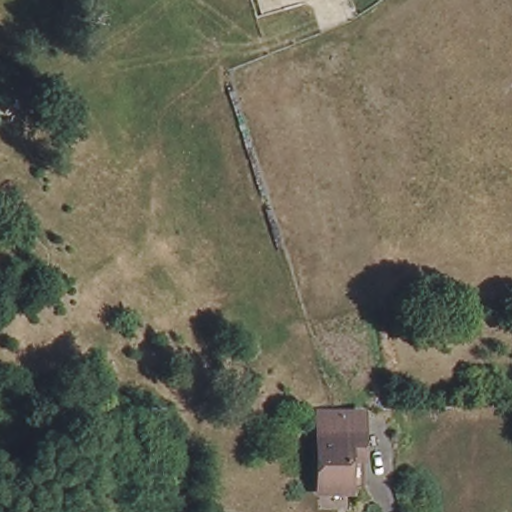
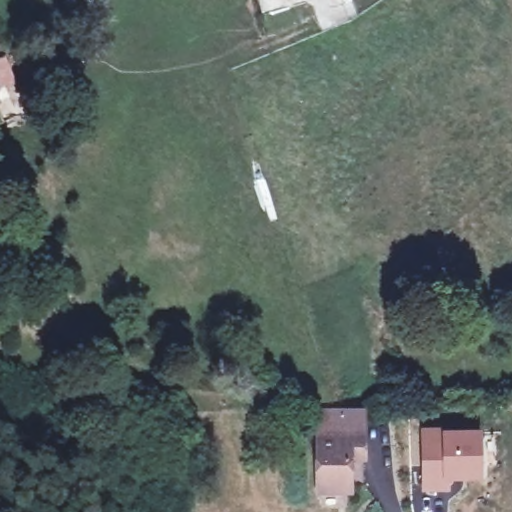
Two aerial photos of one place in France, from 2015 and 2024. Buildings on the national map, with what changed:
unchanged [(316,491),(315,483),(314,433),(329,433),(329,412),(358,411),(359,433),(359,454),(360,483),(345,483),(345,490),(316,491)]
new [(452,479),(451,492),(422,491),(421,428),(442,429),(482,430),(483,479),(452,479)]

